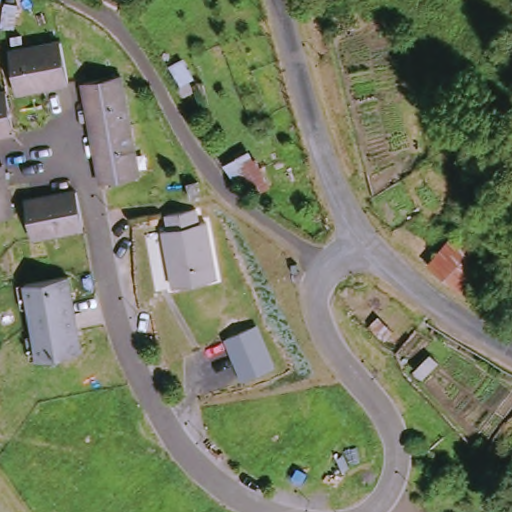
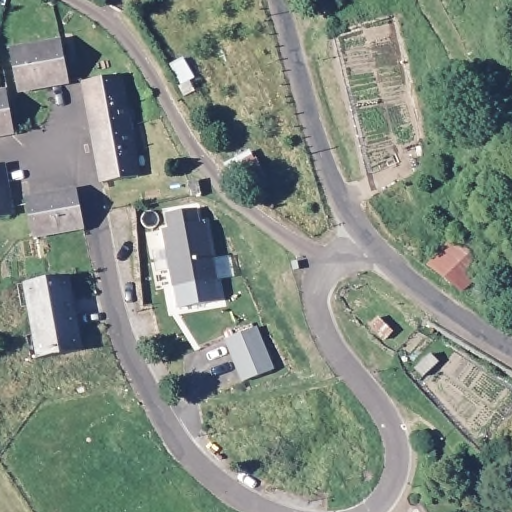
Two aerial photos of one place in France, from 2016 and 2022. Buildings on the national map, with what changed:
unchanged [(69,84),(21,91),(20,84),(15,49),(63,41),(69,84)]
unchanged [(97,133),(90,82),(126,76),(134,126),(97,133)]
unchanged [(21,135),(0,138),(0,97),(15,95),(21,135)]
unchanged [(142,177),(114,183),(106,184),(97,133),(134,126),(142,177)]
unchanged [(17,221),(0,224),(0,170),(10,168),(17,221)]
unchanged [(205,194),(190,197),(187,177),(201,174),(205,194)]
unchanged [(32,205),(82,196),(90,233),(40,241),(35,220),(32,205)]
unchanged [(162,263),(171,262),(166,233),(175,231),(172,218),(199,213),(202,227),(210,226),(220,281),(176,288),(167,289),(162,263)]
unchanged [(457,235),(492,264),(467,298),(432,267),(457,235)]
unchanged [(31,334),(41,333),(36,303),(26,304),(22,283),(32,281),(75,274),(87,352),(45,358),(35,360),(31,334)]
unchanged [(396,324),(387,333),(374,319),(383,310),(396,324)]
unchanged [(227,342),(260,328),(277,370),(244,383),(227,342)]
unchanged [(443,356),(429,372),(420,364),(434,348),(443,356)]

